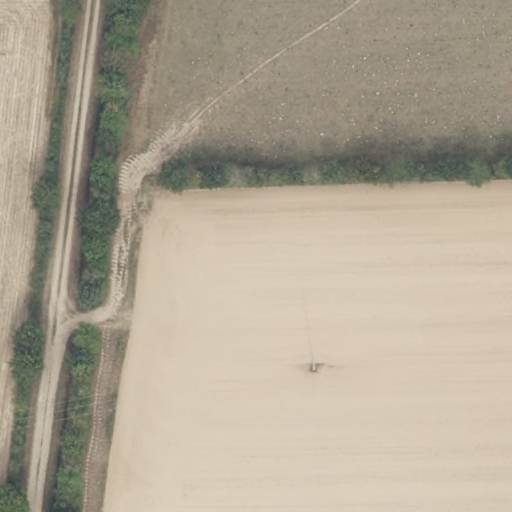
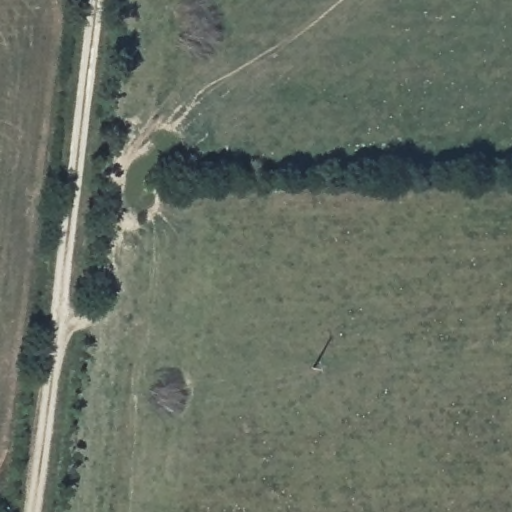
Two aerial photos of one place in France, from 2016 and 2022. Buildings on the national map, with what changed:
[]

